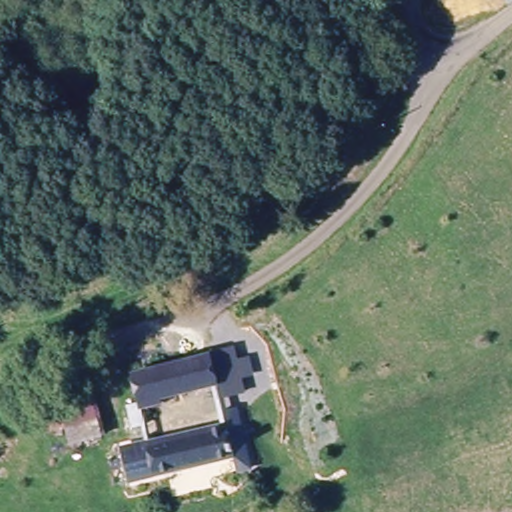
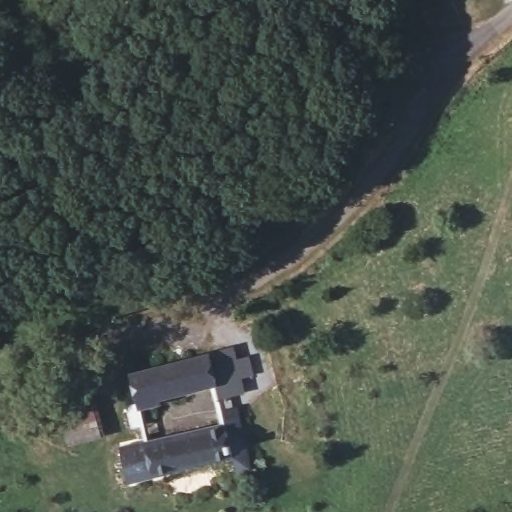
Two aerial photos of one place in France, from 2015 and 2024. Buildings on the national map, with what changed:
unchanged [(233,344),(247,383),(229,389),(226,378),(174,391),(171,397),(154,401),(158,417),(143,419),(135,394),(151,390),(144,370),(233,344)]
unchanged [(75,451),(57,384),(85,374),(106,442),(75,451)]
unchanged [(130,445),(156,439),(155,435),(230,424),(234,442),(247,441),(252,455),(165,474),(137,480),(130,445)]

